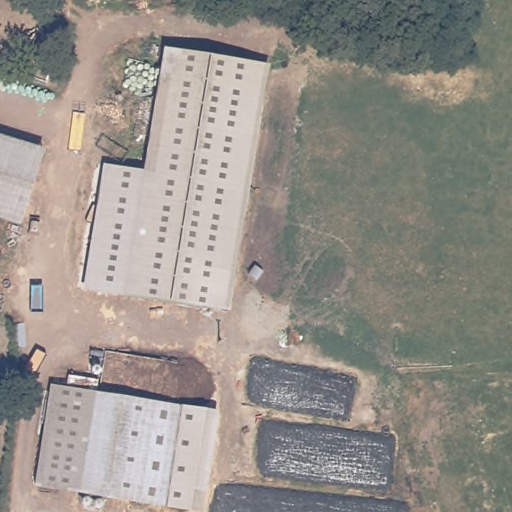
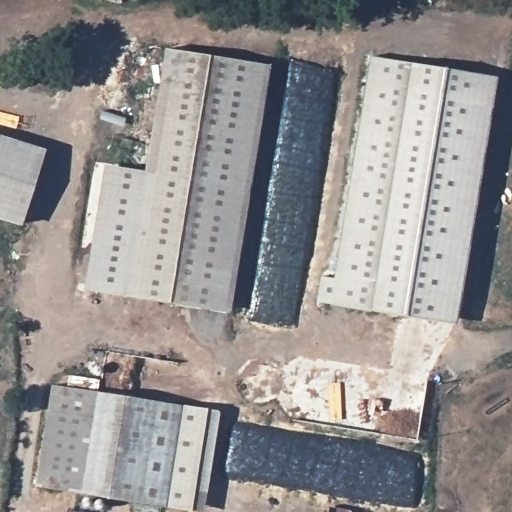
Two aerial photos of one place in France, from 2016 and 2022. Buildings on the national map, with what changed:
unchanged [(253,52),(221,302),(94,286),(110,162),(151,167),(167,42),(253,52)]
new [(454,324),(315,301),(320,276),(333,278),(369,56),(495,77),(454,324)]
unchanged [(0,219),(0,134),(45,148),(23,226),(0,219)]
unchanged [(193,407),(180,509),(154,506),(26,490),(39,388),(83,394),(167,404),(193,407)]

